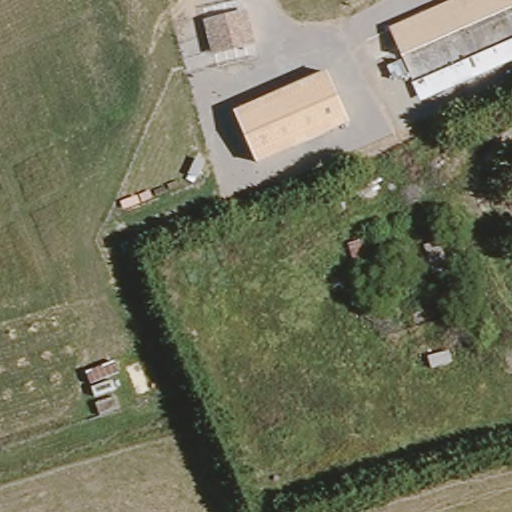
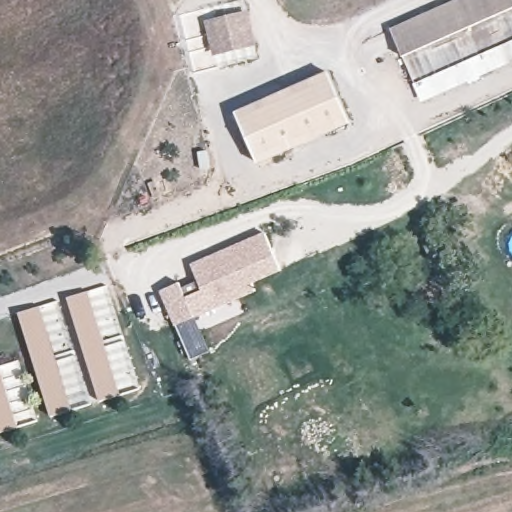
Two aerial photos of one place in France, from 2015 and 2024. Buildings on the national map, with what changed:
unchanged [(512,5),(512,14),(397,61),(386,30),(452,0),(510,0),(512,5)]
unchanged [(250,14),(257,37),(212,54),(206,26),(250,14)]
unchanged [(512,39),(512,62),(421,104),(414,84),(512,39)]
unchanged [(235,114),(330,71),(351,123),(257,165),(235,114)]
new [(190,360),(175,327),(158,290),(181,280),(183,285),(196,280),(189,263),(265,230),(282,271),(253,285),(256,292),(197,318),(211,351),(190,360)]
new [(68,297),(87,291),(120,395),(100,401),(68,297)]
new [(71,409),(51,415),(18,313),(40,307),(71,409)]
new [(20,428),(0,435),(0,370),(20,428)]

